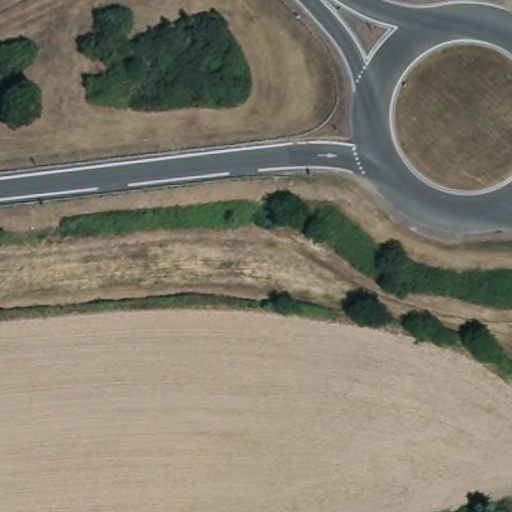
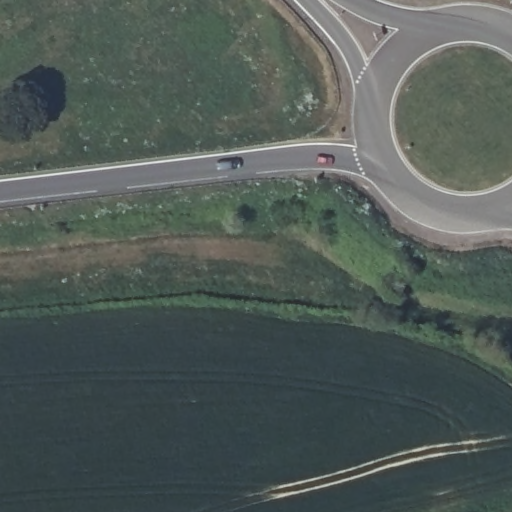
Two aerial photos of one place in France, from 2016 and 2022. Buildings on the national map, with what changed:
[]

